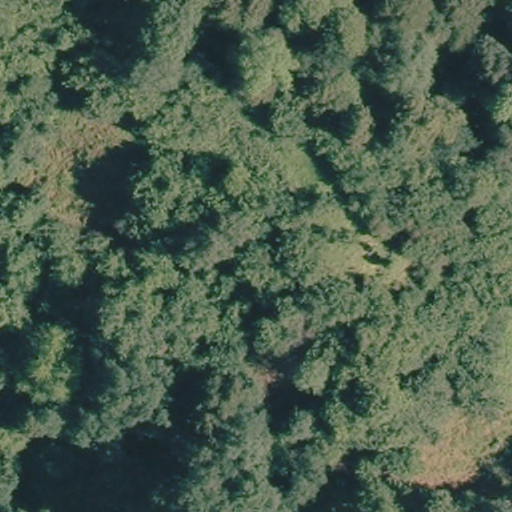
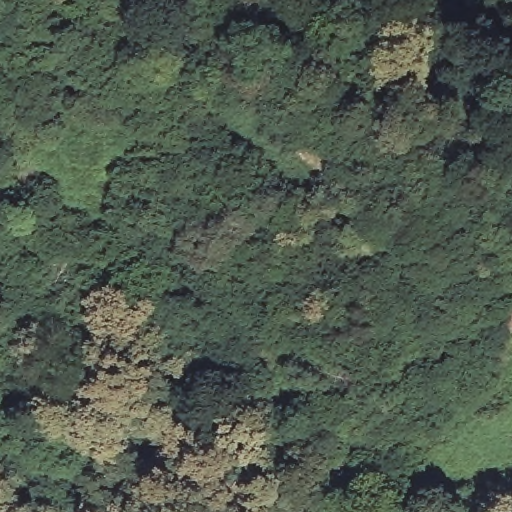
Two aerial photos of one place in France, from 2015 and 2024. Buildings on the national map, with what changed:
unchanged [(209,70),(179,48),(195,32),(222,50),(209,70)]

